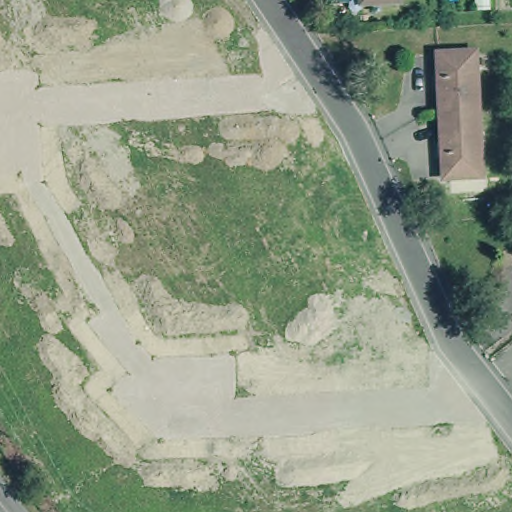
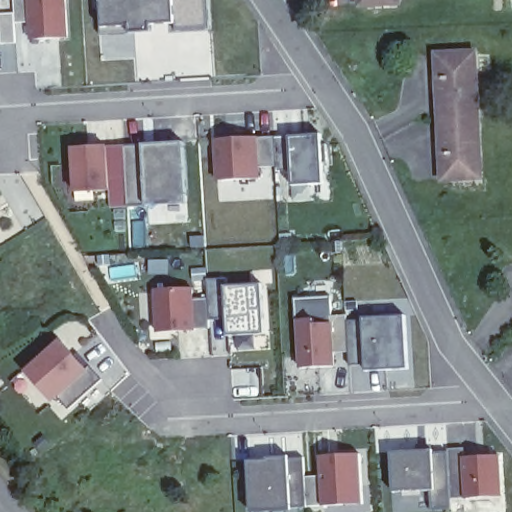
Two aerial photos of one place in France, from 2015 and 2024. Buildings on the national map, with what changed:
new [(29,24),(15,25),(14,14),(14,0),(67,0),(70,37),(30,40),(29,24)]
new [(177,24),(153,26),(153,31),(105,34),(103,0),(207,0),(209,28),(177,31),(177,24)]
unchanged [(362,4),(362,0),(398,0),(398,4),(362,4)]
new [(0,34),(0,14),(14,14),(15,25),(17,43),(2,44),(0,34)]
unchanged [(487,172),(450,175),(443,51),(480,48),(487,172)]
new [(295,186),(293,172),(275,172),(275,166),(274,137),(292,137),(322,135),(325,183),(295,186)]
new [(217,182),(215,140),(274,137),(275,166),(260,167),(260,180),(217,182)]
new [(146,206),(128,206),(125,146),(145,145),(185,142),(188,203),(146,206)]
new [(75,193),(72,148),(110,146),(112,191),(75,193)]
demolished [(197,269),(101,275),(100,232),(197,226),(197,269)]
demolished [(287,261),(275,262),(273,240),(286,240),(287,261)]
new [(227,337),(225,321),(210,321),(208,298),(207,280),(227,278),(227,286),(263,284),(267,334),(227,337)]
new [(210,328),(197,328),(197,331),(157,332),(154,291),(195,288),(195,299),(208,298),(210,321),(210,328)]
new [(297,368),(295,320),(318,318),(319,323),(330,323),(330,316),(348,315),(348,321),(350,352),(337,352),(337,366),(297,368)]
new [(350,352),(348,321),(363,321),(363,317),(407,316),(410,370),(367,372),(367,365),(350,366),(350,352)]
new [(67,411),(57,400),(55,402),(27,372),(64,337),(90,366),(101,379),(67,411)]
demolished [(49,380),(41,391),(25,378),(33,367),(49,380)]
demolished [(372,452),(277,458),(275,417),(370,412),(372,452)]
new [(503,497),(465,498),(452,498),(448,453),(448,449),(464,448),(467,458),(500,456),(503,497)]
new [(452,510),(433,511),(433,491),(395,492),(393,453),(434,451),(435,455),(448,453),(452,498),(452,510)]
new [(320,507),(307,507),(305,477),(320,476),(320,457),(360,454),(363,505),(320,507)]
new [(291,510),(259,512),(253,512),(250,462),(290,460),(303,458),(305,477),(307,507),(291,510)]
demolished [(177,507),(165,508),(161,486),(173,483),(177,507)]

